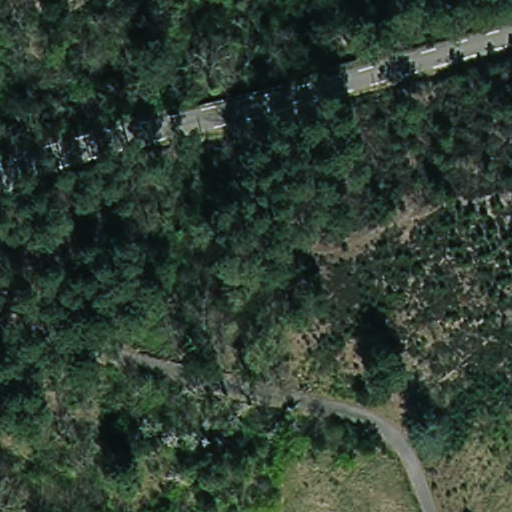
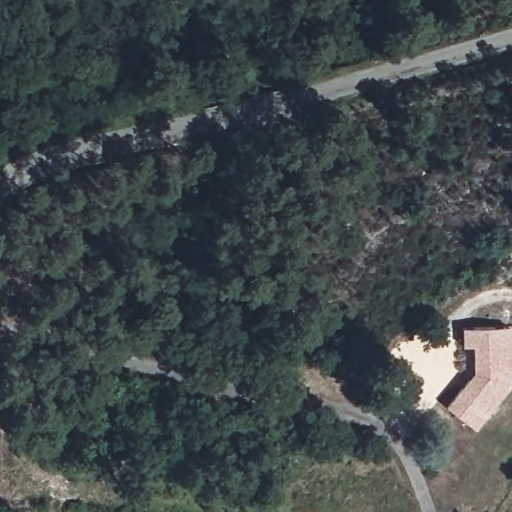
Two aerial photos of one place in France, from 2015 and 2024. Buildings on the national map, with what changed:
new [(509,326),(512,385),(476,430),(445,406),(473,373),(473,347),(462,347),(462,328),(509,326)]

